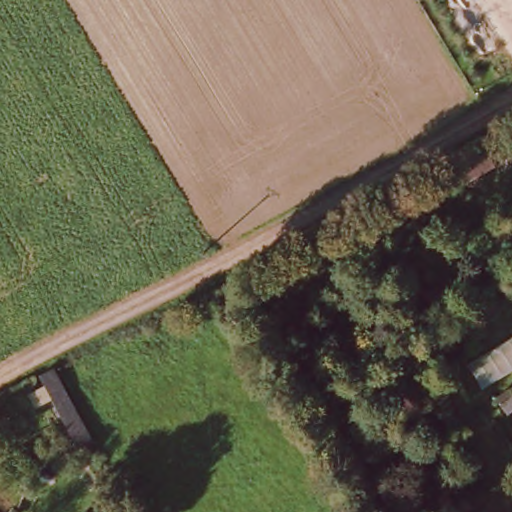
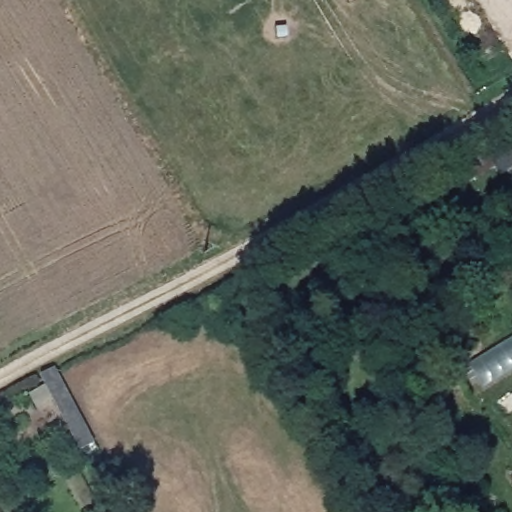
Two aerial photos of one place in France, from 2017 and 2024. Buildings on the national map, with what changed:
unchanged [(483,393),(477,386),(472,389),(465,378),(471,374),(466,368),(512,341),(512,376),(483,393)]
unchanged [(77,442),(42,375),(57,367),(92,434),(77,442)]

